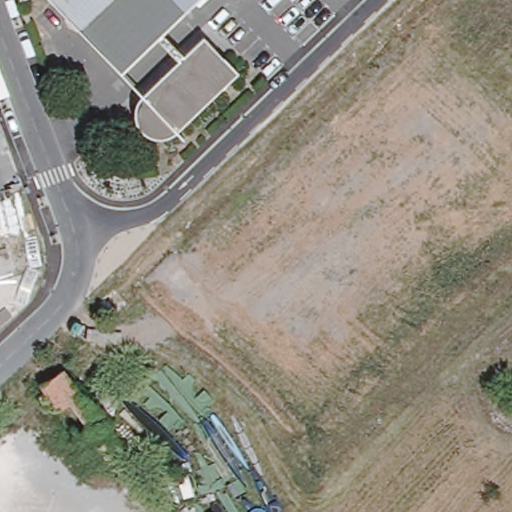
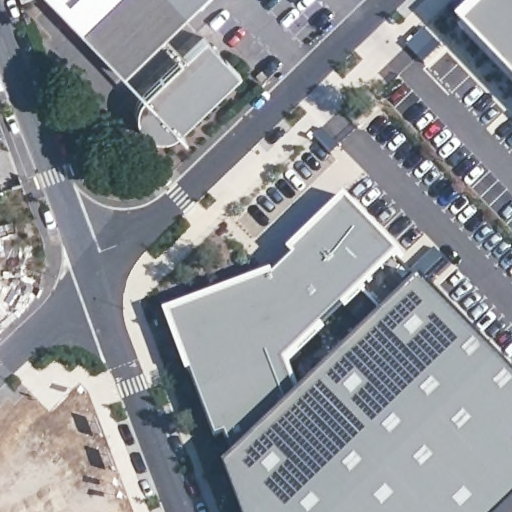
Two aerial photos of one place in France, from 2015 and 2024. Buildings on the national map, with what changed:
unchanged [(203,0),(199,4),(128,70),(100,41),(75,15),(60,0),(203,0)]
new [(503,0),(512,0),(512,70),(472,29),(503,0)]
unchanged [(240,76),(175,139),(169,141),(162,143),(155,143),(147,139),(142,136),(139,132),(135,125),(134,120),(133,114),(135,107),(137,102),(140,98),(145,94),(203,40),(240,76)]
new [(400,261),(425,287),(430,282),(512,369),(512,511),(511,512),(249,512),(233,470),(239,465),(232,437),(222,440),(199,375),(192,377),(170,315),(277,274),(279,280),(300,260),(292,255),(351,197),(405,256),(400,261)]
demolished [(40,377),(60,363),(106,429),(86,443),(40,377)]

